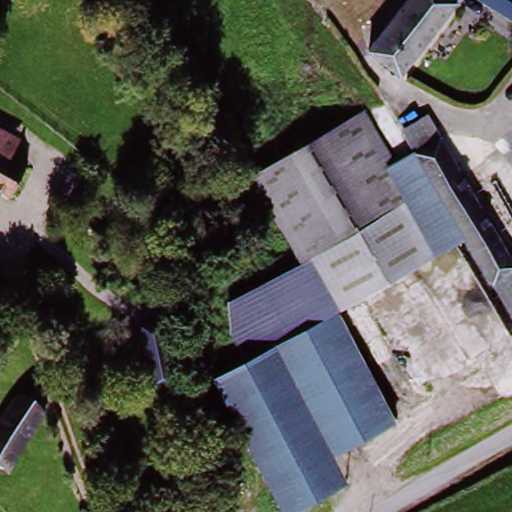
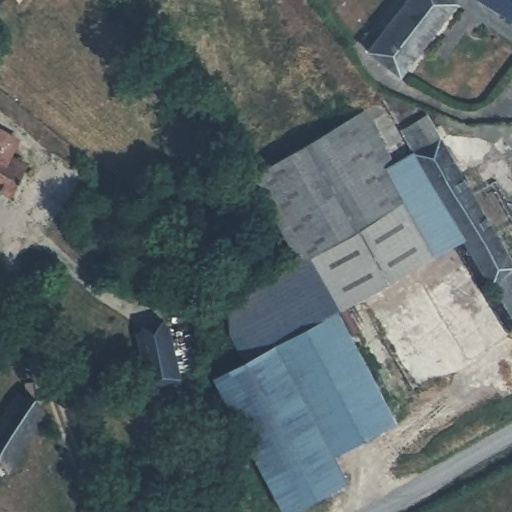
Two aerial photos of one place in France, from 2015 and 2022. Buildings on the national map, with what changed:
unchanged [(363,47),(410,0),(442,0),(450,8),(387,71),(363,47)]
unchanged [(475,0),(512,0),(512,22),(475,1),(475,0)]
unchanged [(372,227),(306,263),(255,170),(360,114),(391,165),(424,217),(381,242),(372,227)]
unchanged [(423,117),(512,258),(512,309),(399,132),(423,117)]
unchanged [(27,134),(14,158),(0,151),(0,121),(27,134)]
unchanged [(14,158),(34,169),(19,198),(0,187),(0,151),(14,158)]
unchanged [(410,154),(464,240),(251,355),(225,307),(306,263),(372,227),(381,242),(424,217),(391,165),(410,154)]
unchanged [(279,512),(273,500),(210,388),(335,318),(393,423),(331,458),(345,483),(291,512),(279,512)]
unchanged [(169,324),(171,382),(141,384),(138,326),(169,324)]
unchanged [(4,476),(0,473),(0,418),(14,397),(44,415),(4,476)]

